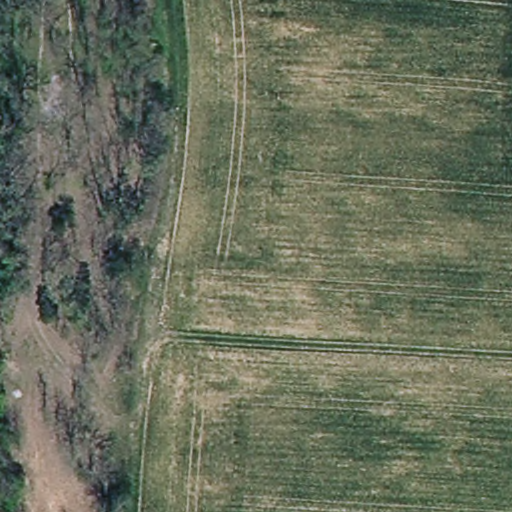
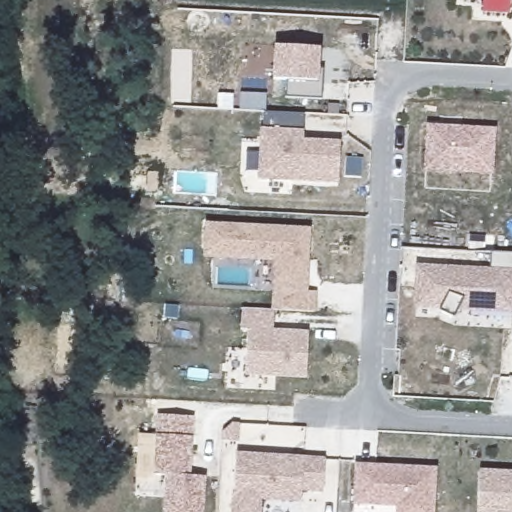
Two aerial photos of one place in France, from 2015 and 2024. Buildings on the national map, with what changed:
new [(286,81),(273,81),(275,46),(320,49),(320,71),(324,71),(322,100),(286,98),(286,81)]
new [(304,115),(303,131),(303,140),(340,142),(338,183),(259,180),(263,129),(264,112),(304,115)]
new [(497,129),(494,175),(425,171),(427,126),(497,129)]
new [(312,228),(309,292),(317,293),(316,313),(271,311),(272,291),(274,262),(204,257),(206,224),(312,228)]
new [(454,318),(440,310),(413,309),(415,265),(492,267),(492,253),(512,254),(512,313),(458,311),(454,318)]
new [(271,311),(274,311),(274,328),(309,330),(307,379),(245,375),(248,330),(240,330),(241,307),(271,308),(271,311)]
new [(165,476),(153,476),(156,436),(157,413),(195,417),(194,438),(192,477),(207,477),(204,512),(163,512),(165,476)]
new [(304,456),(326,458),(324,494),(302,493),(301,503),(263,502),(262,512),(230,512),(236,452),(304,456)]
new [(438,467),(435,512),(395,512),(396,507),(353,505),(355,463),(438,467)]
new [(479,470),(512,471),(512,512),(477,512),(479,470)]

